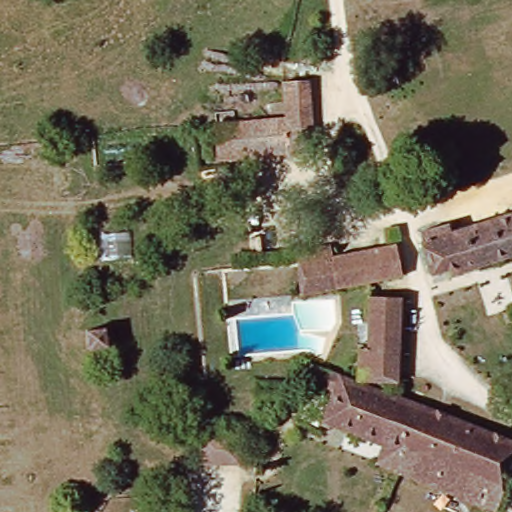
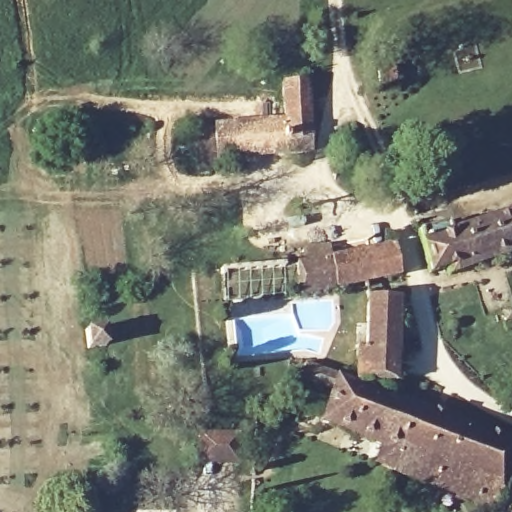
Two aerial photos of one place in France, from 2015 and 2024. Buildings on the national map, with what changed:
unchanged [(291,113),(290,79),(315,74),(320,146),(227,161),(222,127),(291,113)]
unchanged [(458,267),(437,274),(425,226),(451,219),(455,224),(512,209),(512,254),(463,269),(458,267)]
unchanged [(331,244),(335,253),(401,241),(408,268),(309,292),(297,251),(331,244)]
unchanged [(399,377),(358,376),(358,342),(369,340),(372,289),(403,291),(399,377)]
unchanged [(100,308),(120,305),(123,327),(102,329),(100,308)]
unchanged [(406,451),(357,432),(325,419),(315,415),(326,387),(300,375),(308,356),(332,365),(358,376),(512,439),(512,475),(500,508),(399,470),(406,451)]

